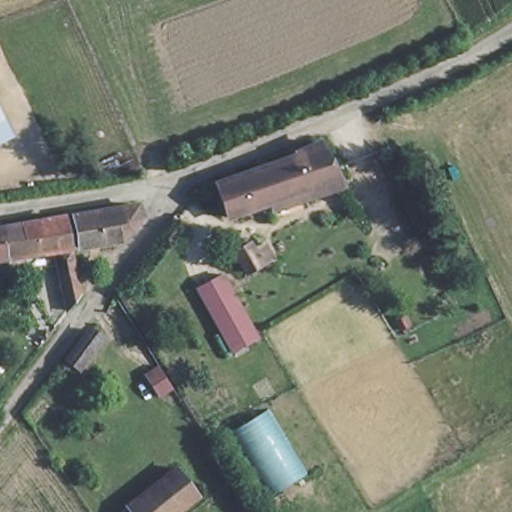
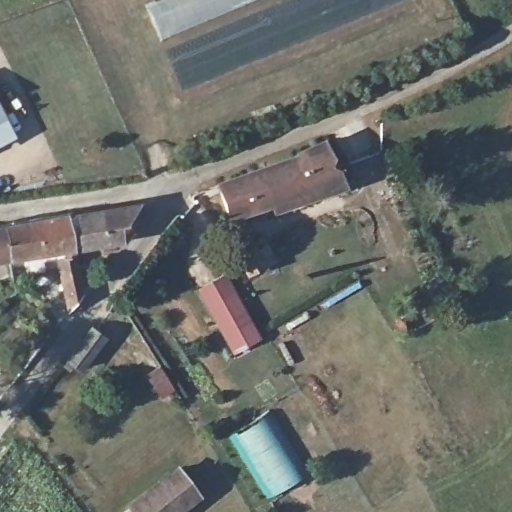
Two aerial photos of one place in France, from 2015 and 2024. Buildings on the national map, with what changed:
new [(147,6),(161,0),(250,0),(160,38),(147,6)]
unchanged [(0,143),(0,103),(15,137),(0,143)]
unchanged [(307,195),(302,187),(225,218),(214,191),(320,147),(337,182),(307,195)]
unchanged [(137,207),(142,217),(122,243),(80,249),(74,216),(137,207)]
unchanged [(2,225),(68,216),(72,251),(8,260),(2,225)]
unchanged [(0,261),(0,225),(2,225),(8,260),(0,261)]
unchanged [(257,245),(263,260),(252,265),(245,250),(257,245)]
unchanged [(259,332),(232,347),(202,292),(197,284),(224,268),(225,271),(259,332)]
unchanged [(92,328),(106,340),(82,370),(67,360),(92,328)]
unchanged [(159,396),(142,371),(158,361),(175,386),(159,396)]
unchanged [(312,474),(275,497),(237,433),(275,411),(312,474)]
unchanged [(179,512),(116,512),(178,465),(200,497),(179,512)]

